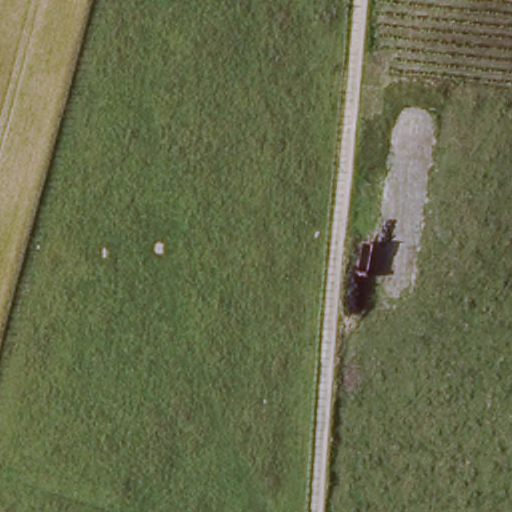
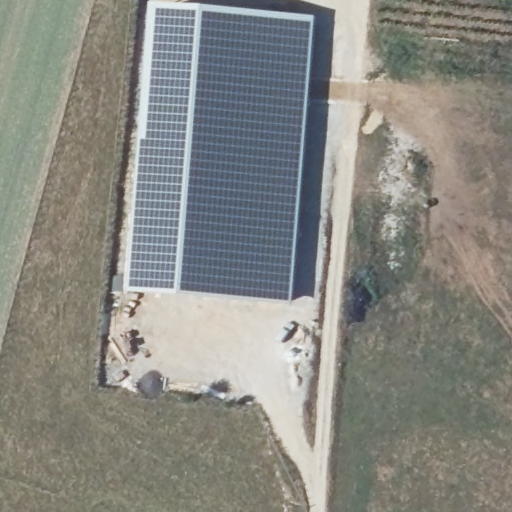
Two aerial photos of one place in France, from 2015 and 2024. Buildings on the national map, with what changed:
new [(130,230),(138,93),(148,4),(181,5),(315,15),(292,304),(290,304),(290,305),(124,295),(130,230)]

